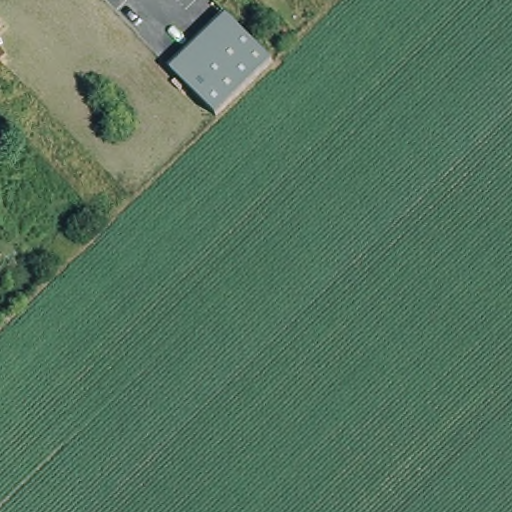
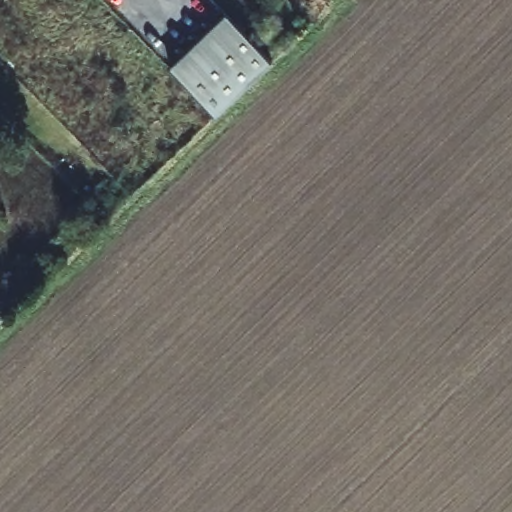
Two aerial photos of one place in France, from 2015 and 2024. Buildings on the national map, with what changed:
unchanged [(241,92),(218,114),(175,71),(231,16),(274,61),(241,92)]

